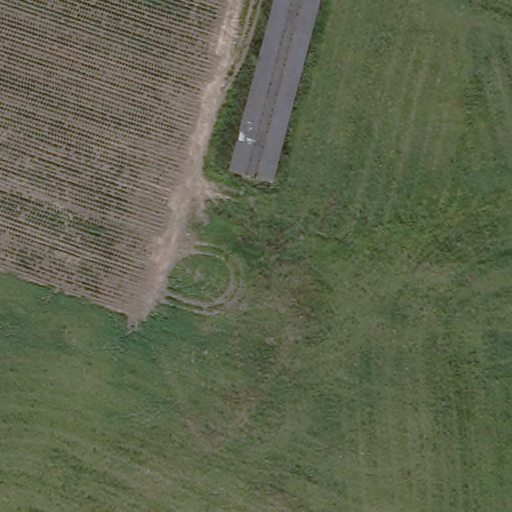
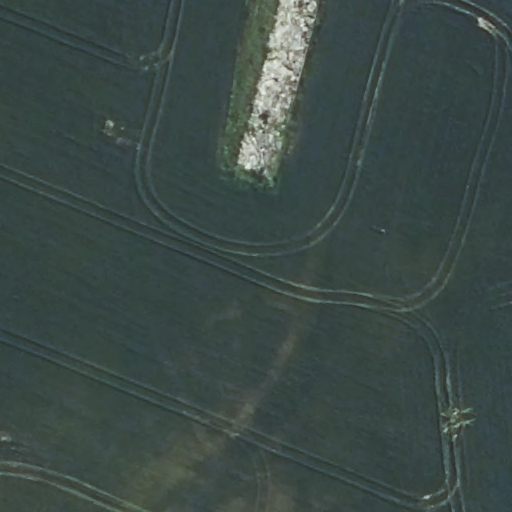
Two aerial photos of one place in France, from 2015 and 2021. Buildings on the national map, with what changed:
demolished [(272,0),(322,0),(276,173),(230,162),(272,0)]

